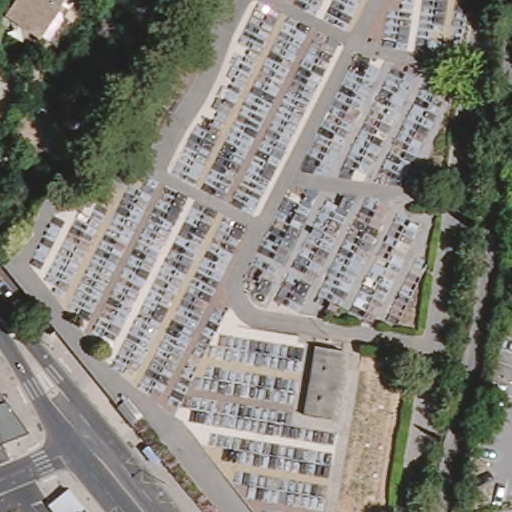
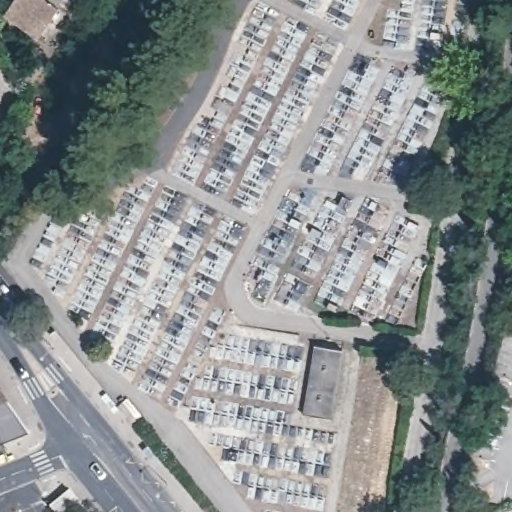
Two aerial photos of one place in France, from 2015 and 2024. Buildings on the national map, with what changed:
unchanged [(57,14),(37,44),(6,24),(21,0),(65,0),(57,14)]
unchanged [(334,419),(309,415),(320,347),(343,350),(334,419)]
unchanged [(4,402),(25,433),(0,443),(0,404),(4,402)]

